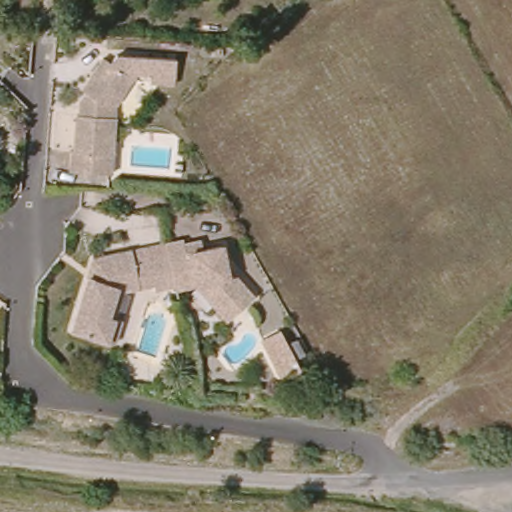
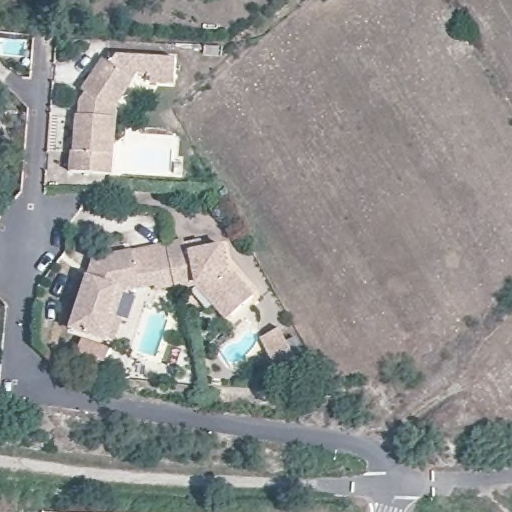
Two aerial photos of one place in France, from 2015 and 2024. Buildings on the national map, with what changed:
unchanged [(124,57),(183,65),(180,90),(156,86),(157,79),(143,77),(139,81),(118,65),(124,57)]
unchanged [(139,81),(138,84),(119,107),(113,176),(73,173),(74,152),(76,152),(79,116),(82,116),(83,103),(94,89),(91,86),(111,60),(118,65),(139,81)]
unchanged [(173,285),(173,282),(168,256),(166,245),(166,243),(183,240),(201,237),(205,250),(224,246),(231,276),(238,275),(253,298),(231,314),(221,320),(196,282),(173,285)]
unchanged [(108,347),(100,343),(65,325),(96,261),(98,260),(166,245),(168,256),(173,282),(153,286),(152,280),(127,285),(126,288),(109,321),(118,326),(108,347)]
unchanged [(279,330),(301,373),(282,375),(261,339),(279,330)]

